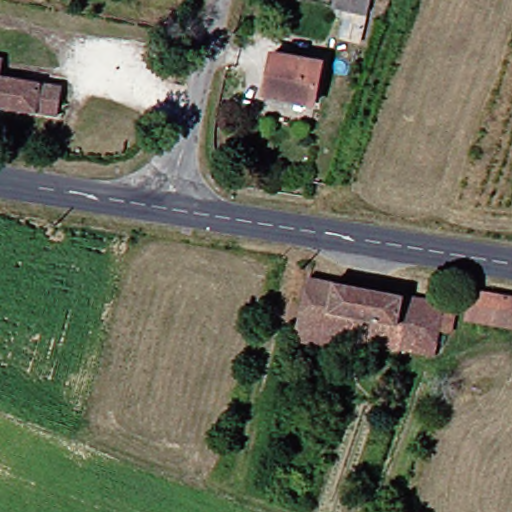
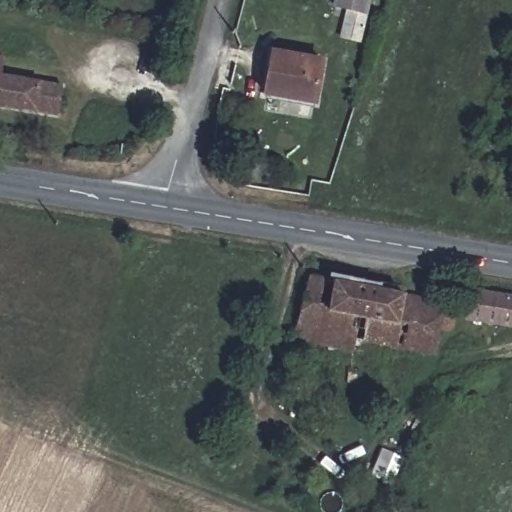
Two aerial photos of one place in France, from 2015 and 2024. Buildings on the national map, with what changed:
unchanged [(344,12),(327,9),(329,0),(366,0),(356,40),(339,36),(344,12)]
unchanged [(317,64),(310,103),(263,93),(271,55),(317,64)]
unchanged [(0,74),(0,58),(2,59),(0,74)]
unchanged [(52,118),(0,109),(0,78),(58,88),(52,118)]
unchanged [(316,349),(289,341),(304,278),(449,311),(444,338),(434,336),(429,359),(359,342),(356,358),(316,349)]
unchanged [(464,317),(469,291),(512,298),(512,326),(464,317)]

